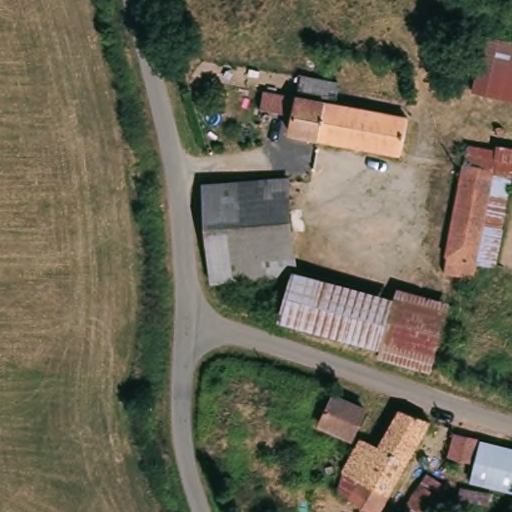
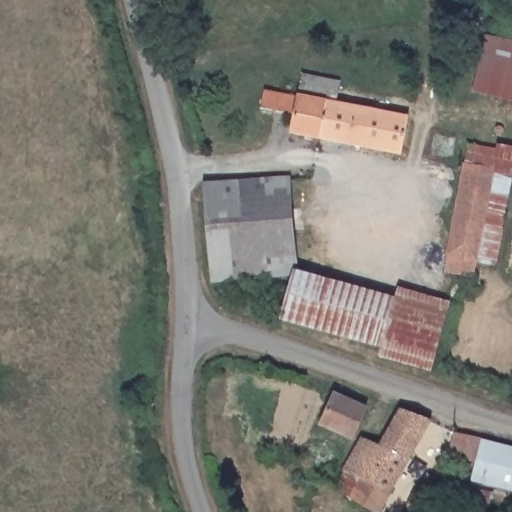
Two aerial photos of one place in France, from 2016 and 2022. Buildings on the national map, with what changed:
unchanged [(483,38),(512,44),(512,102),(472,92),(483,38)]
unchanged [(292,102),(294,83),(316,88),(332,90),(329,109),(404,122),(398,155),(291,139),(292,121),(259,116),(262,97),(288,102),(292,102)]
unchanged [(495,145),(512,147),(512,180),(510,180),(499,271),(477,265),(476,280),(443,274),(468,146),(495,152),(495,145)]
unchanged [(286,181),(297,278),(208,287),(207,282),(202,240),(197,199),(196,193),(286,181)]
unchanged [(387,348),(287,328),(297,278),(399,299),(387,348)]
unchanged [(409,363),(385,356),(387,348),(399,299),(416,302),(447,310),(433,370),(409,363)]
unchanged [(319,428),(331,402),(361,413),(349,441),(319,428)]
unchanged [(342,497),(356,463),(368,437),(371,430),(368,429),(381,404),(405,413),(409,404),(417,407),(433,414),(419,438),(414,449),(413,451),(409,458),(397,483),(382,512),(374,512),(356,504),(352,502),(342,497)]
unchanged [(475,463),(445,461),(449,432),(512,447),(512,496),(468,483),(475,463)]
unchanged [(415,494),(423,480),(442,492),(429,512),(403,512),(404,512),(415,494)]

